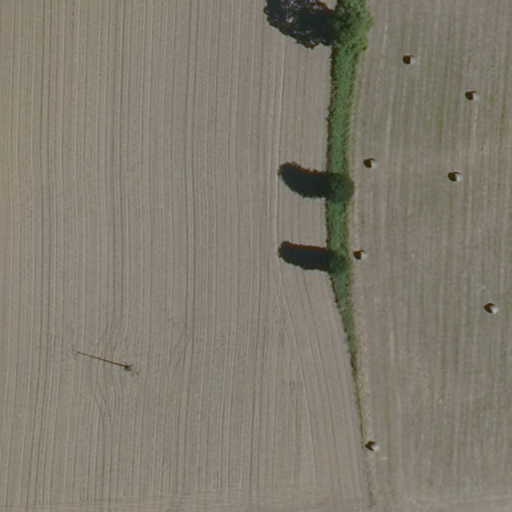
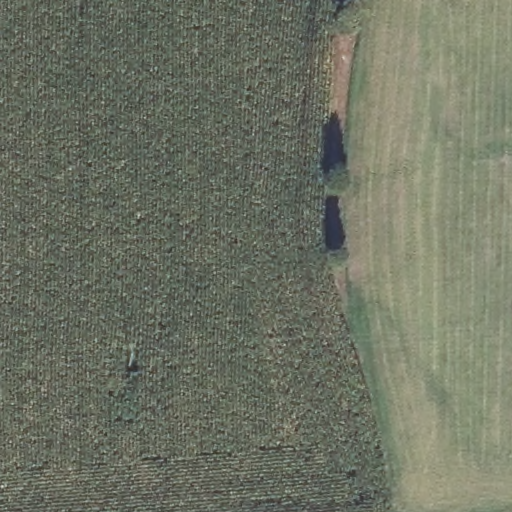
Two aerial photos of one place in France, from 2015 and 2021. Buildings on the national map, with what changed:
[]

